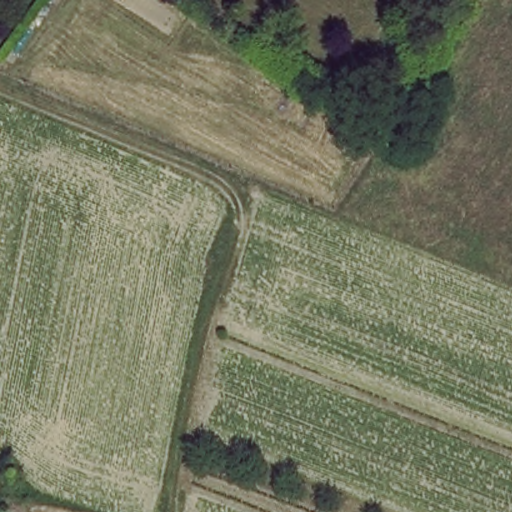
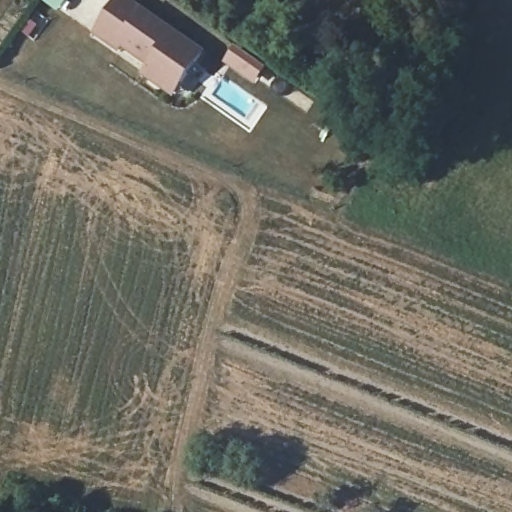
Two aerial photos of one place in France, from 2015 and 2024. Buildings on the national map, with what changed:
new [(130,0),(141,7),(204,53),(172,99),(139,75),(144,67),(119,50),(117,53),(92,36),(115,0),(130,0)]

